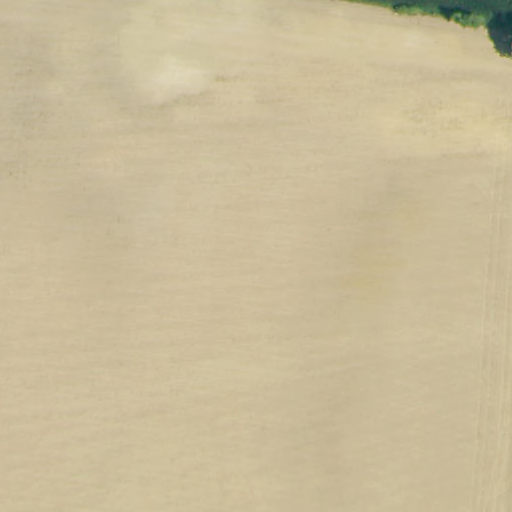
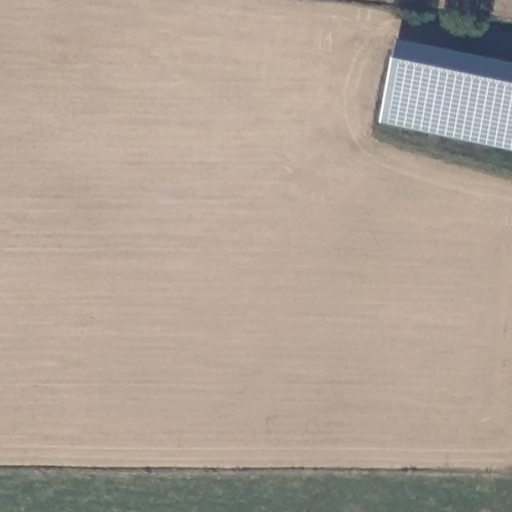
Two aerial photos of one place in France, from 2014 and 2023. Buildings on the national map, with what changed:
new [(400,39),(512,62),(512,149),(382,121),(400,39)]

